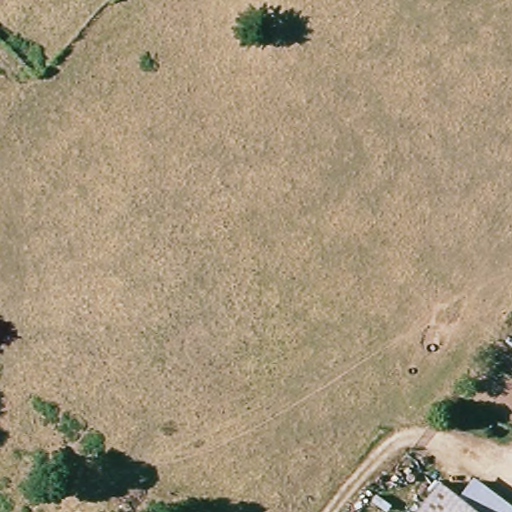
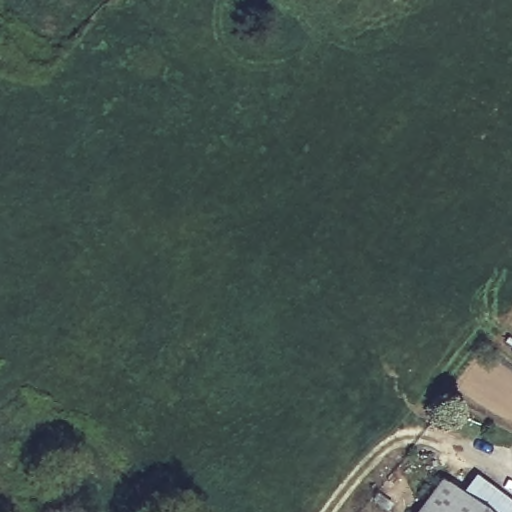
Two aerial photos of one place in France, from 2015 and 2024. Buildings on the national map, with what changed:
unchanged [(488,512),(406,512),(421,481),(488,512)]

